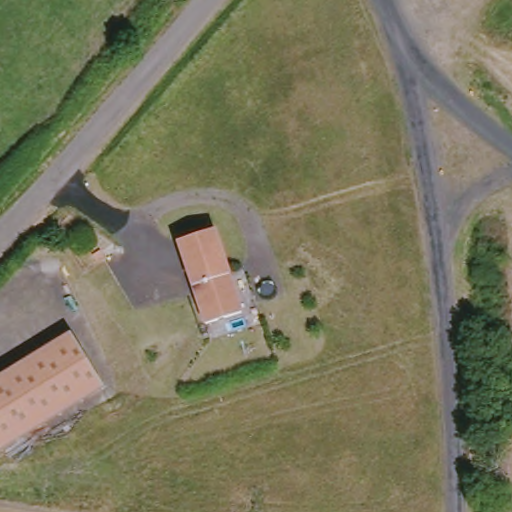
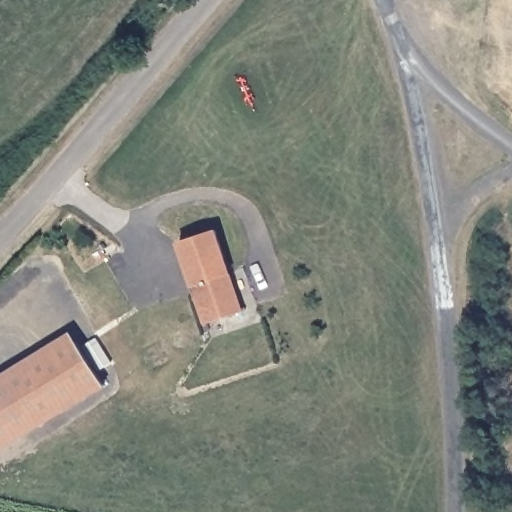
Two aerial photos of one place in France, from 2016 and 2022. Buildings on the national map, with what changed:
unchanged [(228,279),(241,318),(206,330),(177,249),(213,236),(228,279)]
unchanged [(0,440),(0,378),(66,337),(94,382),(0,440)]

